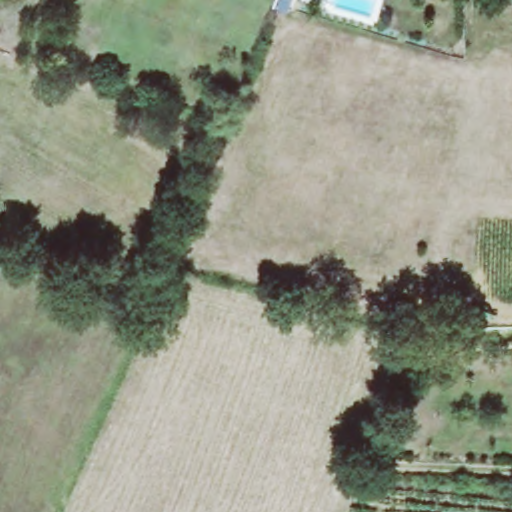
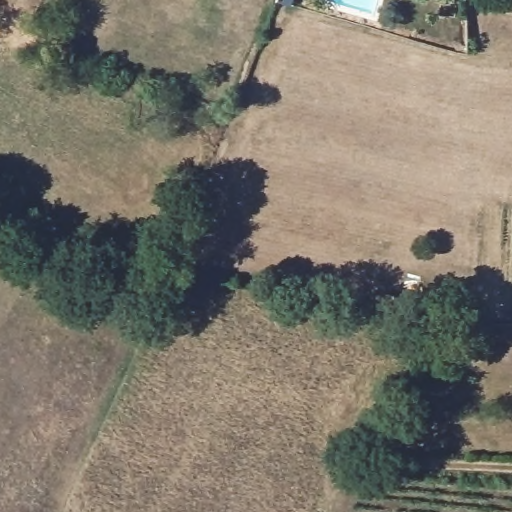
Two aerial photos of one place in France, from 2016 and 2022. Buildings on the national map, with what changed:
unchanged [(402,293),(420,296),(415,316),(397,315),(402,293)]

